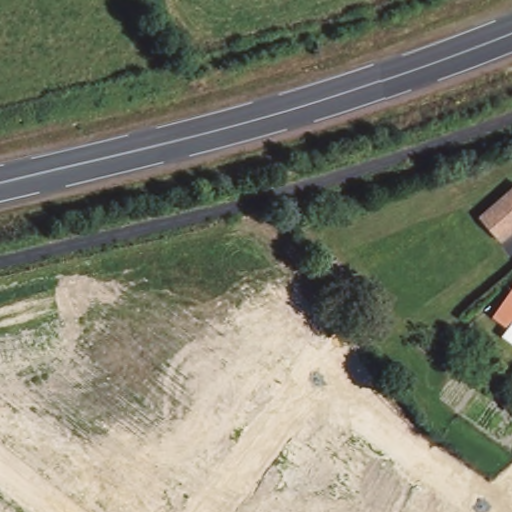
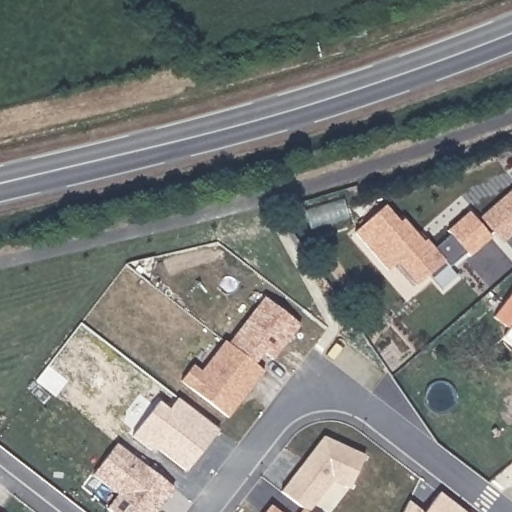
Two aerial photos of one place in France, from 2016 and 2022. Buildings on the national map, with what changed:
unchanged [(473,216),(512,183),(512,227),(495,241),(473,216)]
new [(465,282),(451,266),(449,268),(446,265),(419,288),(399,266),(391,274),(356,236),(385,206),(400,224),(403,220),(417,235),(423,242),(426,240),(434,250),(450,235),(447,231),(469,212),(491,237),(470,257),(480,268),(465,282)]
unchanged [(511,325),(495,314),(512,292),(512,338),(505,333),(511,325)]
new [(265,298),(300,325),(273,360),(264,353),(255,365),(228,345),(265,298)]
new [(228,418),(181,381),(193,366),(201,372),(225,341),(228,345),(255,365),(264,371),(246,395),(240,402),(228,418)]
new [(323,437),(364,456),(349,490),(332,481),(309,512),(307,512),(303,510),(281,492),(300,468),(306,460),(323,437)]
new [(111,512),(105,507),(116,493),(93,475),(117,444),(173,488),(163,501),(157,510),(155,512),(111,512)]
new [(440,493),(463,512),(426,512),(429,507),(440,493)]
new [(403,512),(408,502),(421,512),(403,512)]
new [(266,512),(270,506),(278,512),(266,512)]
new [(307,512),(301,512),(303,510),(307,512)]

